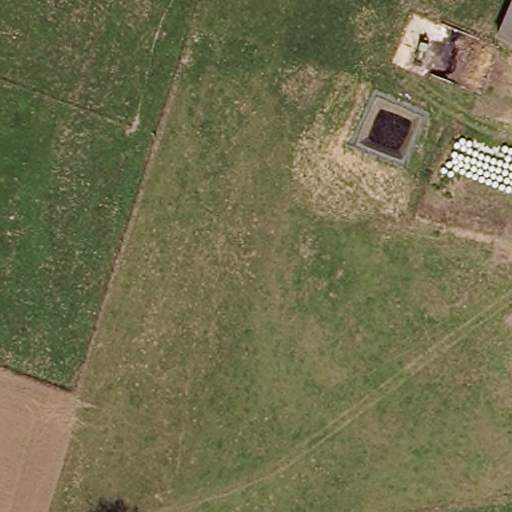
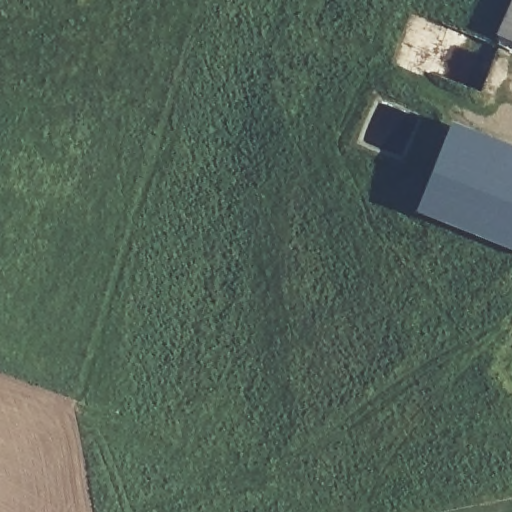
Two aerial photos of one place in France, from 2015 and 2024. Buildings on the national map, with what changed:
unchanged [(512,13),(512,38),(503,35),(512,13)]
new [(451,120),(512,146),(512,250),(415,212),(451,120)]

